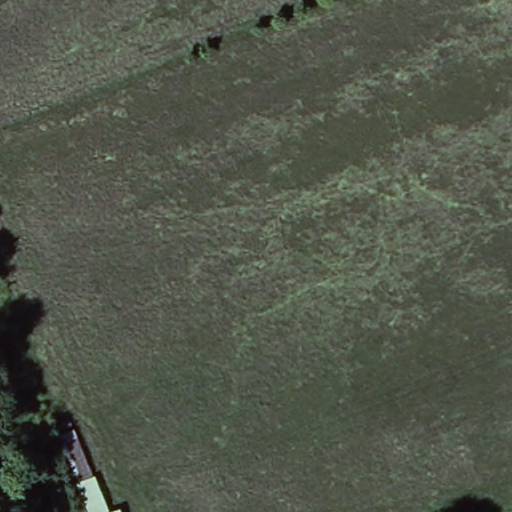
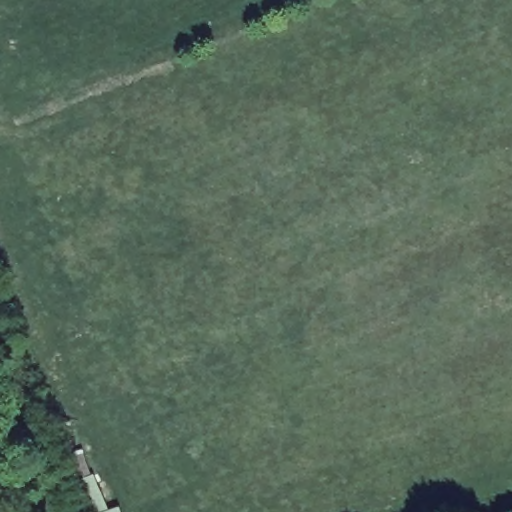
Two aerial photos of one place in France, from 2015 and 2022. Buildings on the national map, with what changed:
unchanged [(120,512),(104,512),(118,508),(120,512)]

